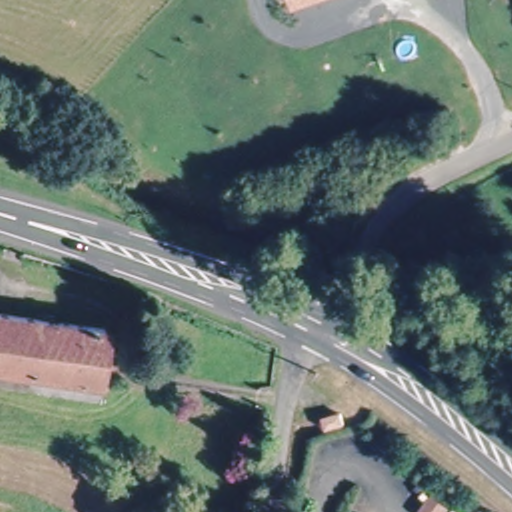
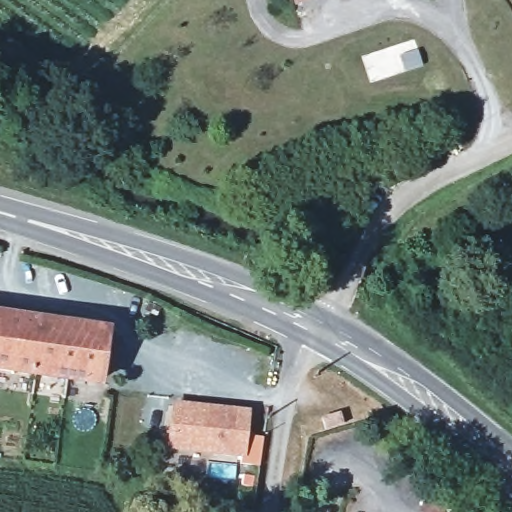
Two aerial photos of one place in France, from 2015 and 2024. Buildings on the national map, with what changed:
unchanged [(297,0),(302,0),(297,1),(297,0)]
unchanged [(98,383),(0,368),(0,314),(105,330),(98,383)]
new [(250,408),(246,455),(168,450),(172,401),(250,408)]

